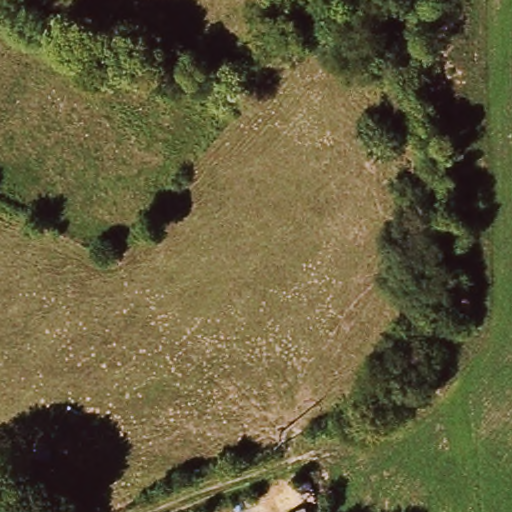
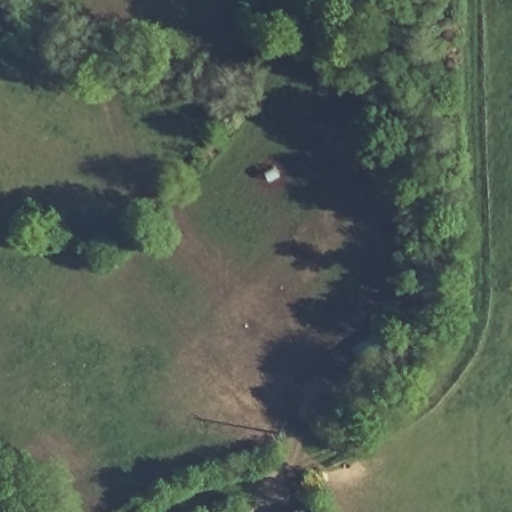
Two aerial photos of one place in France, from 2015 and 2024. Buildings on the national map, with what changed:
unchanged [(306,512),(296,512),(305,507),(306,512)]

